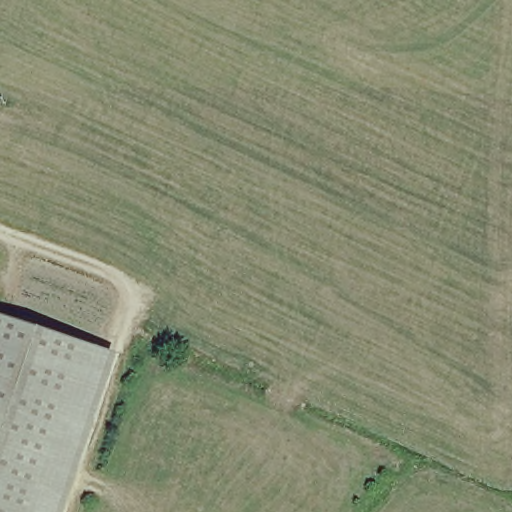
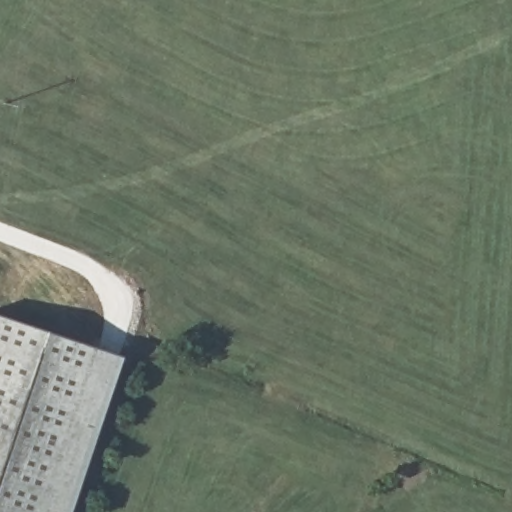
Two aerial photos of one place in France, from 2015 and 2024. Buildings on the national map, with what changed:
unchanged [(117,362),(67,512),(0,512),(0,318),(117,362)]

